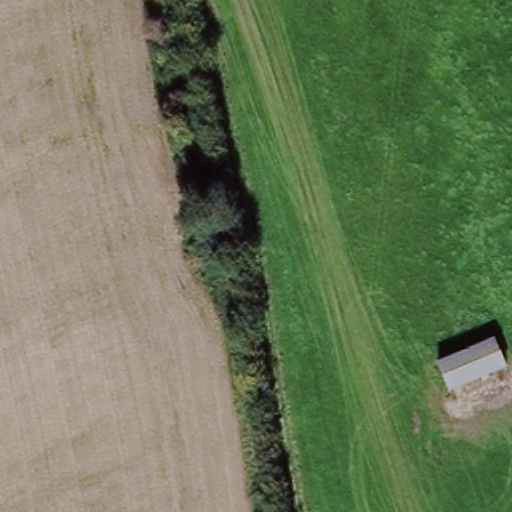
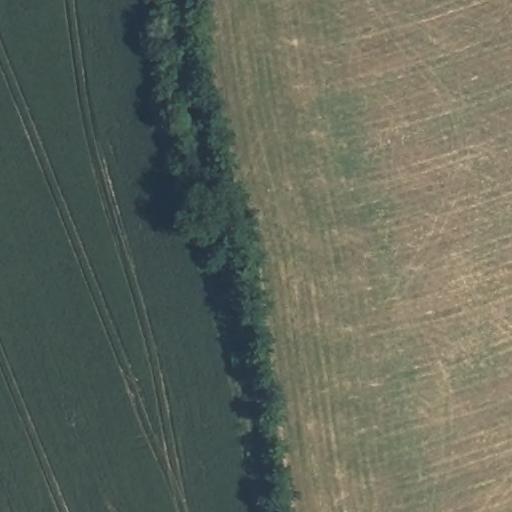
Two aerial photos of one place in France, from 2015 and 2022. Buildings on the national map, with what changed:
demolished [(440,361),(497,338),(510,369),(455,392),(440,361)]

